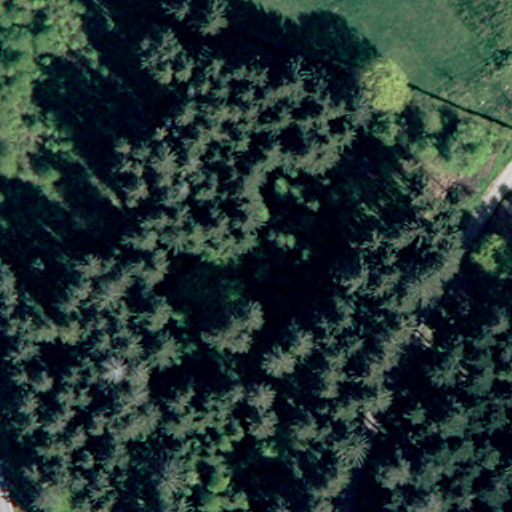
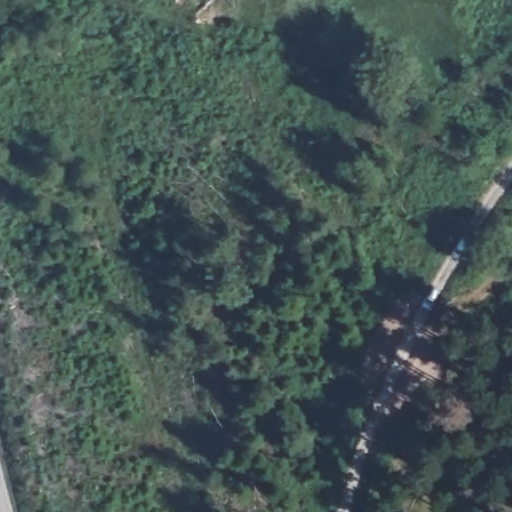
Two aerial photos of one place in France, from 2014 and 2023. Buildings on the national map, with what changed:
[]

